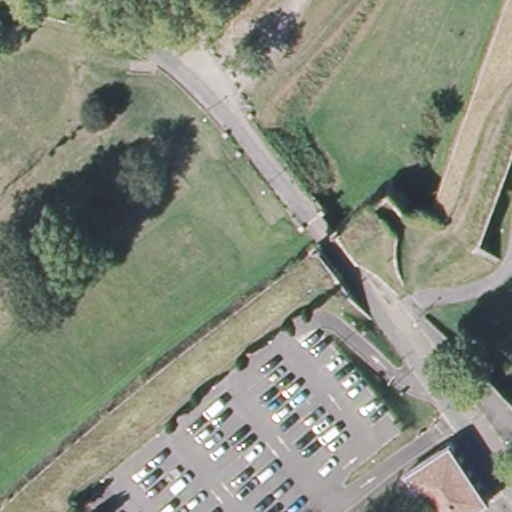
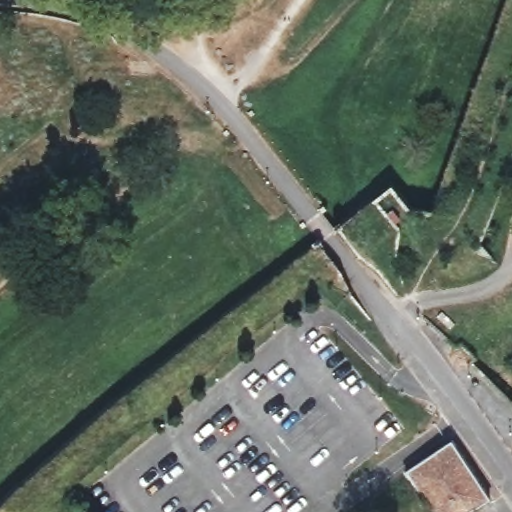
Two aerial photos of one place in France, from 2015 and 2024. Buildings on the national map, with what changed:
unchanged [(404,471),(451,442),(488,500),(469,512),(431,512),(404,471)]

